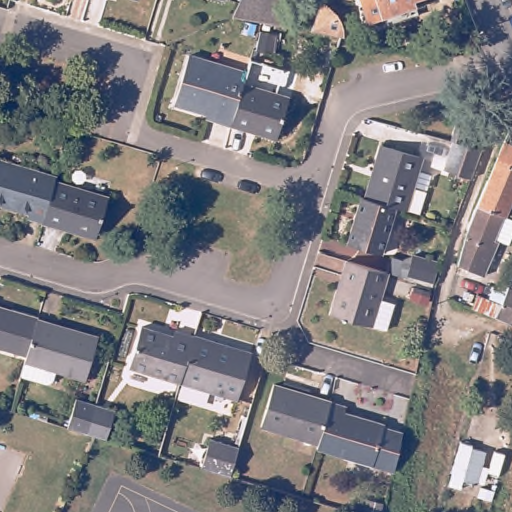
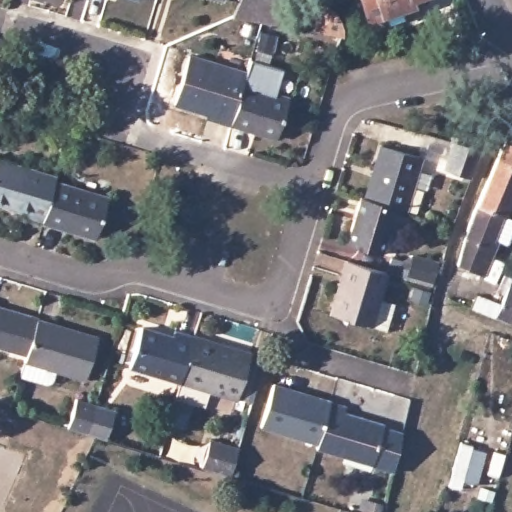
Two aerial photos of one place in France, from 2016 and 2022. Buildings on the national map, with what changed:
unchanged [(242,0),(271,0),(286,2),(283,25),(259,22),(232,18),(242,0)]
unchanged [(429,7),(402,17),(384,23),(376,0),(427,0),(429,7)]
unchanged [(324,10),(328,12),(331,14),(334,17),(336,16),(339,19),(343,26),(343,33),(312,29),(319,10),(324,10)]
unchanged [(218,120),(219,115),(179,104),(193,57),(249,73),(247,83),(234,125),(218,120)]
unchanged [(247,83),(291,96),(279,137),(234,125),(247,83)]
unchanged [(456,127),(466,130),(461,146),(483,153),(474,175),(472,181),(443,172),(451,143),(456,127)]
unchanged [(512,221),(512,235),(508,244),(500,241),(486,277),(459,266),(466,243),(472,224),(480,204),(489,181),(512,129),(512,196),(507,208),(504,215),(504,217),(512,221)]
unchanged [(381,149),(421,161),(405,213),(396,210),(365,201),(381,149)]
unchanged [(30,210),(0,201),(0,156),(59,174),(57,180),(45,219),(29,215),(30,210)]
unchanged [(57,180),(109,196),(96,236),(45,219),(57,180)]
unchanged [(365,201),(396,210),(381,256),(346,245),(360,199),(365,201)]
unchanged [(385,274),(377,299),(391,303),(382,331),(330,314),(346,262),(385,274)]
unchanged [(494,317),(489,316),(504,285),(512,288),(512,324),(494,317)]
unchanged [(37,315),(25,355),(24,358),(0,351),(0,303),(38,313),(37,315)]
unchanged [(37,315),(98,333),(86,374),(56,364),(51,379),(21,369),(24,358),(25,355),(37,315)]
unchanged [(138,368),(149,328),(182,338),(184,332),(201,337),(188,383),(138,368)]
unchanged [(201,337),(258,354),(244,400),(188,383),(201,337)]
unchanged [(259,425),(271,382),(328,399),(315,442),(259,425)]
unchanged [(104,434),(93,431),(85,429),(67,424),(76,395),(94,400),(113,406),(104,434)]
unchanged [(392,470),(369,464),(314,447),(315,442),(328,399),(344,404),(342,410),(382,422),(381,424),(402,430),(392,470)]
unchanged [(209,436),(239,445),(230,474),(201,464),(209,436)]

